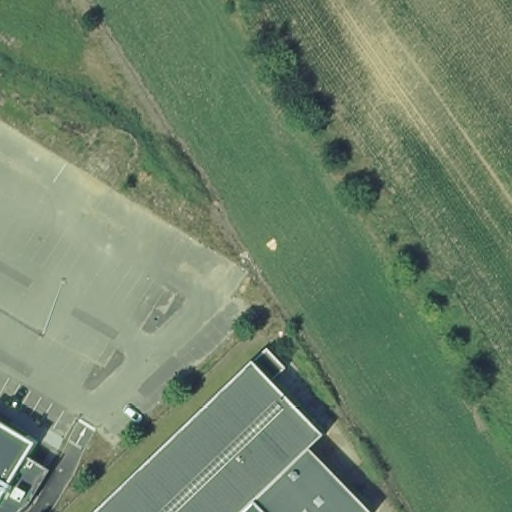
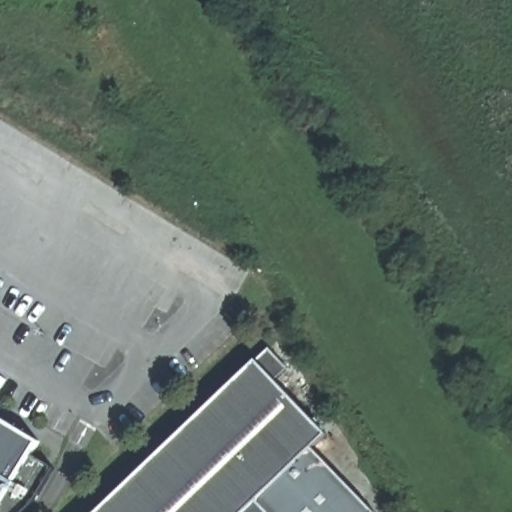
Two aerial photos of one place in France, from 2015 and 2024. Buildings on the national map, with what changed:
unchanged [(246,512),(98,512),(264,352),(282,372),(270,384),(322,438),(308,452),(253,505),(246,512)]
unchanged [(55,469),(33,503),(24,512),(0,512),(0,418),(40,443),(32,456),(55,469)]
unchanged [(365,512),(260,512),(253,505),(308,452),(365,512)]
unchanged [(260,512),(246,512),(253,505),(260,512)]

